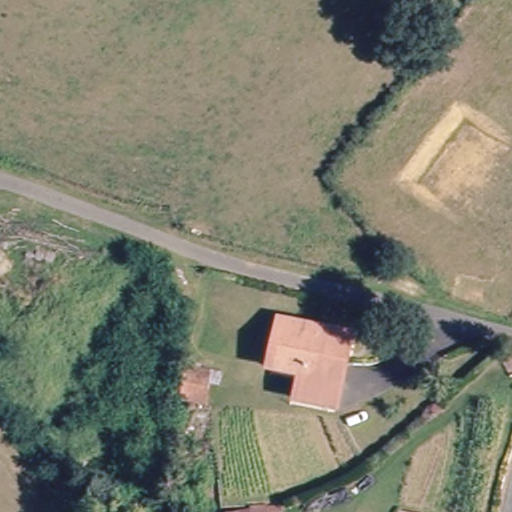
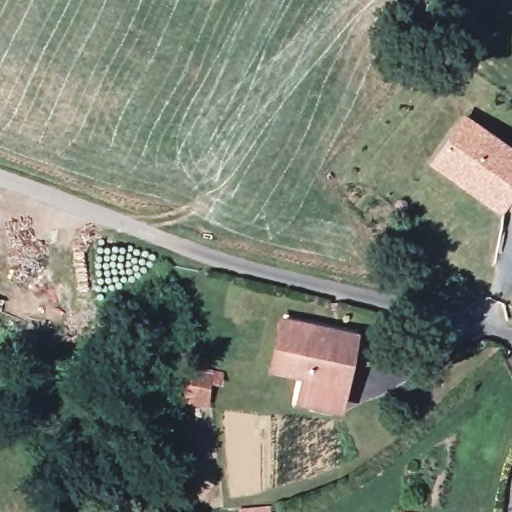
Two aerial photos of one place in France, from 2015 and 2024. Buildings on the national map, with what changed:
new [(512,148),(512,197),(500,214),(427,165),(463,113),(512,148)]
unchanged [(357,339),(346,388),(340,413),(301,404),(307,379),(276,372),(287,324),(357,339)]
unchanged [(170,375),(197,380),(192,409),(165,404),(170,375)]
unchanged [(290,506),(290,512),(226,512),(226,511),(290,506)]
unchanged [(399,512),(400,510),(406,512),(399,512)]

